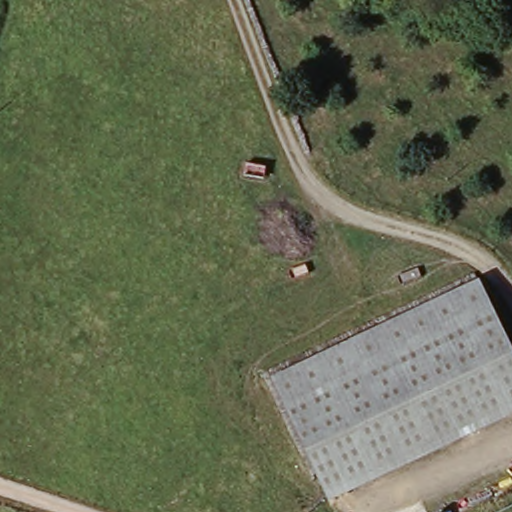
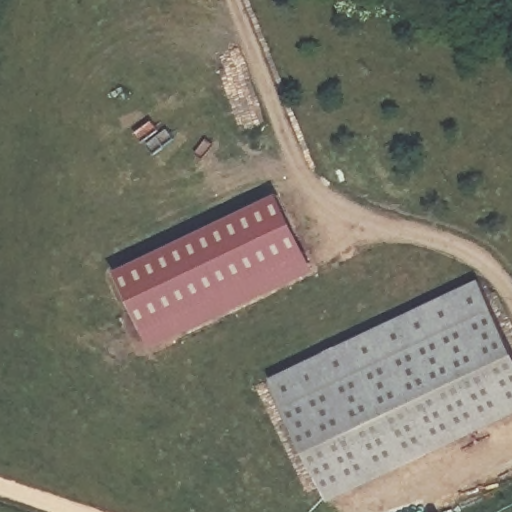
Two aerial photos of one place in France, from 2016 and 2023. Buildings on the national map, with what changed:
new [(115,270),(278,194),(315,272),(151,350),(115,270)]
unchanged [(512,348),(512,415),(327,502),(271,379),(480,279),(512,348)]

